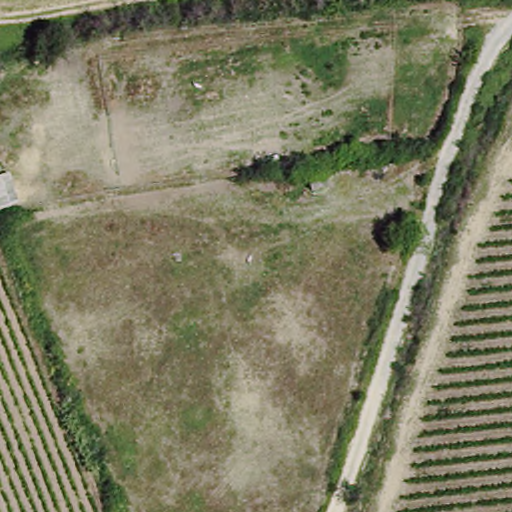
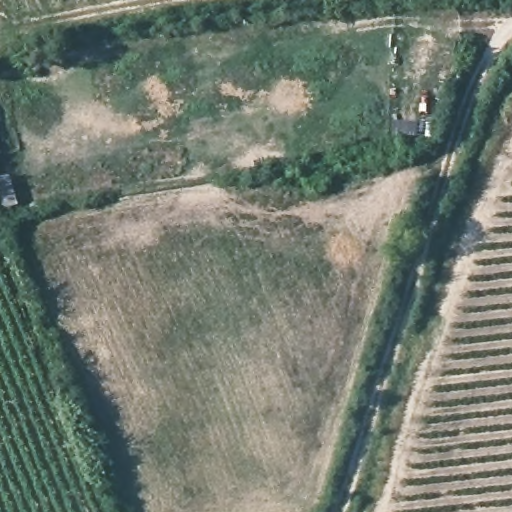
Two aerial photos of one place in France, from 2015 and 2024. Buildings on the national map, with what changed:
unchanged [(17,207),(0,215),(0,170),(5,168),(17,207)]

